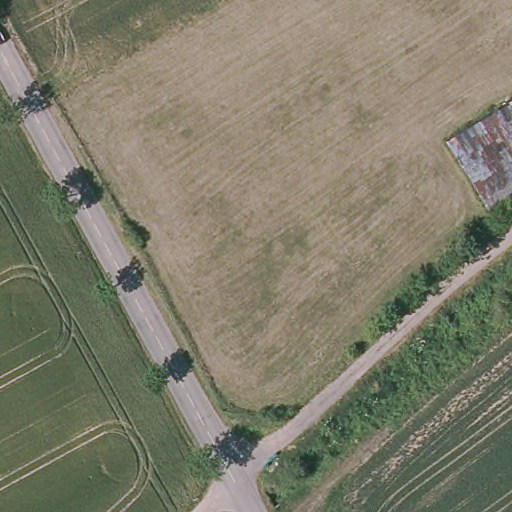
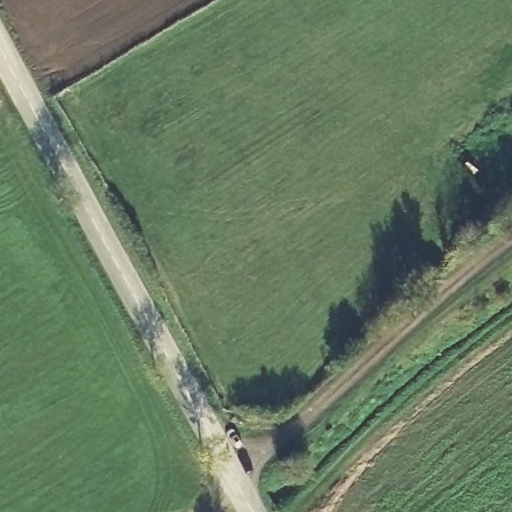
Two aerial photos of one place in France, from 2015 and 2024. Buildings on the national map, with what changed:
unchanged [(512,108),(512,180),(485,195),(454,142),(512,108)]

